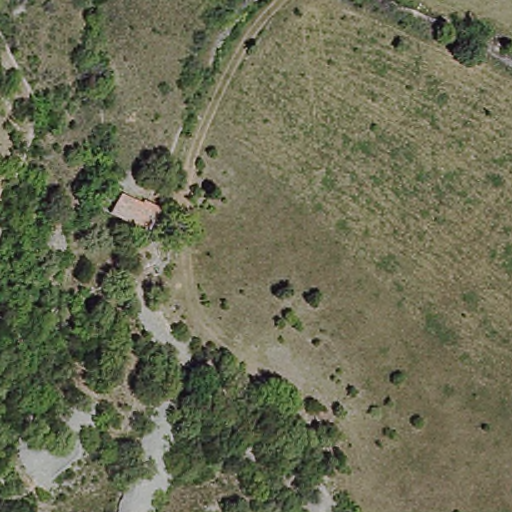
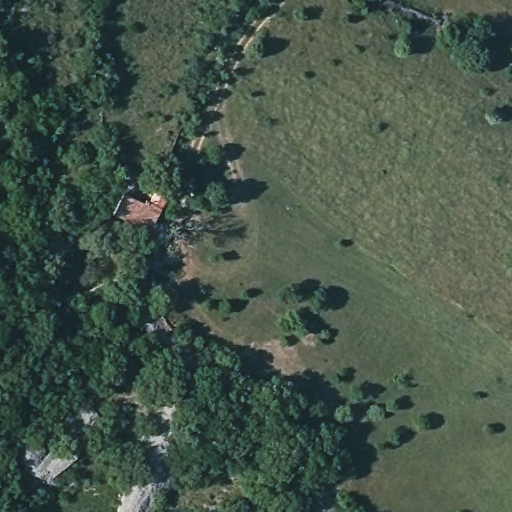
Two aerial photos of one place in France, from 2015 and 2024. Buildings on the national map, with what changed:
unchanged [(151,232),(106,215),(117,190),(162,209),(151,232)]

